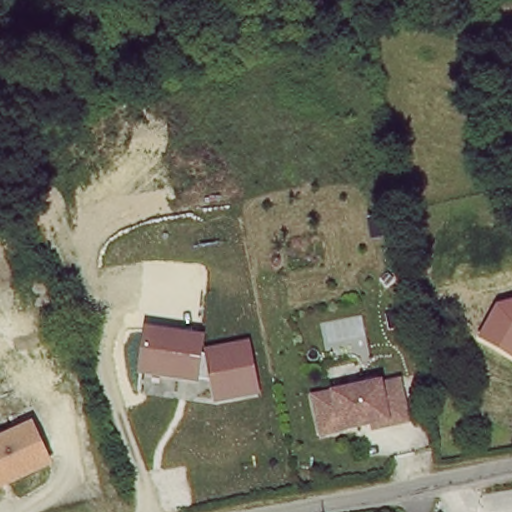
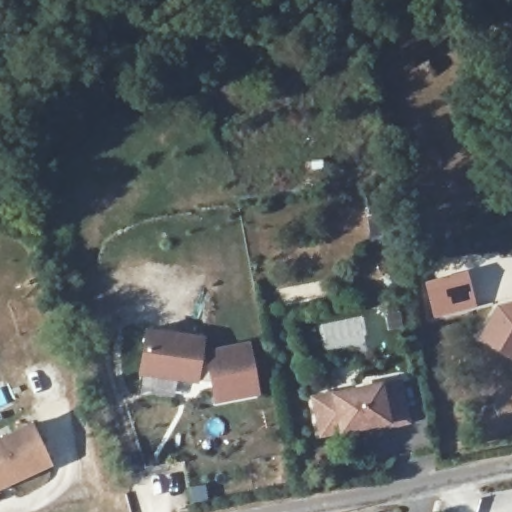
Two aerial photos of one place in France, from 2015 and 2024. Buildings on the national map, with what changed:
new [(467,269),(476,308),(433,318),(423,281),(467,269)]
unchanged [(496,304),(512,299),(512,356),(479,337),(496,304)]
unchanged [(209,334),(206,345),(251,337),(262,389),(214,400),(207,380),(136,371),(144,323),(209,334)]
unchanged [(318,437),(309,394),(392,376),(402,419),(318,437)]
unchanged [(52,462),(0,487),(0,431),(30,417),(52,462)]

